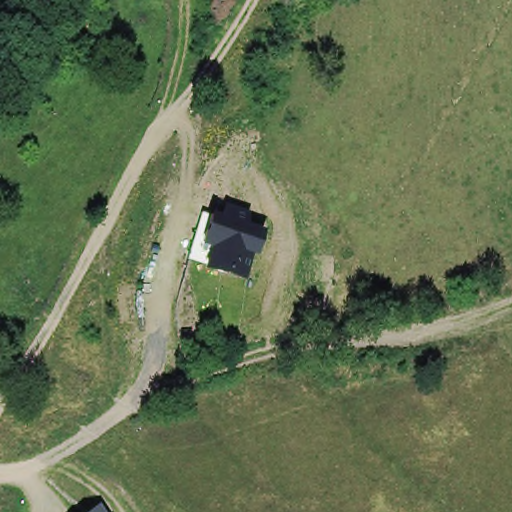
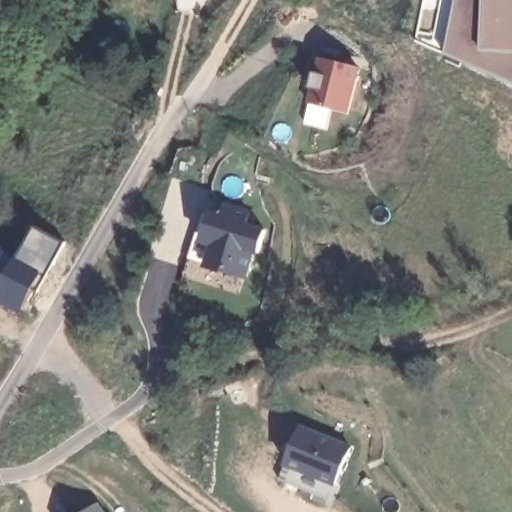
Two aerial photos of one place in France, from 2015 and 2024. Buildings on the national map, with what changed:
new [(453,0),(512,0),(512,84),(443,53),(453,0)]
new [(348,113),(306,104),(318,58),(361,68),(348,113)]
unchanged [(208,213),(261,228),(256,254),(251,254),(246,280),(203,270),(209,246),(199,243),(208,213)]
new [(9,263),(30,233),(61,244),(14,320),(0,314),(0,259),(9,263)]
new [(339,492),(278,470),(293,429),(353,450),(339,492)]
unchanged [(98,503),(103,512),(86,512),(98,503)]

